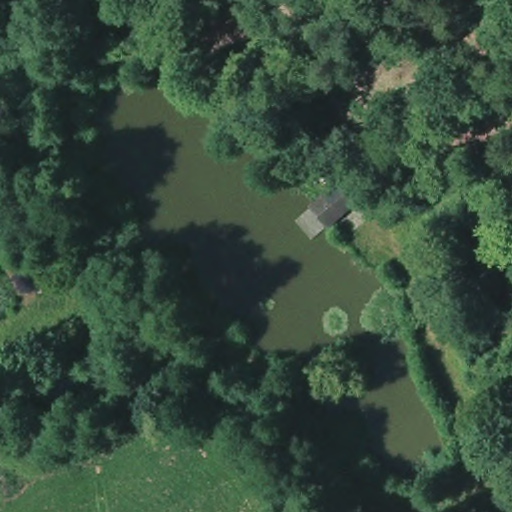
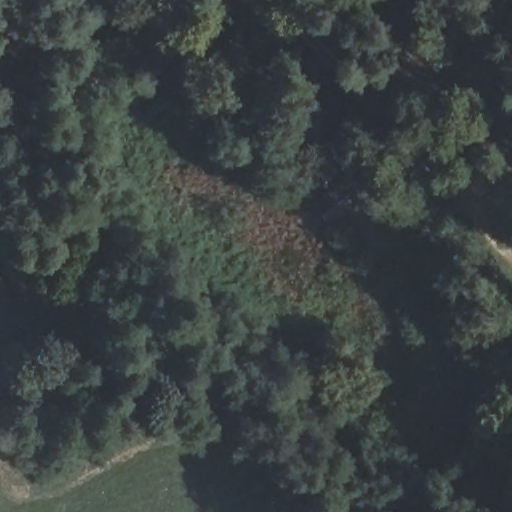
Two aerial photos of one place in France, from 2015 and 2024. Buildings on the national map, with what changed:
unchanged [(328,193),(349,175),(367,195),(348,214),(328,193)]

